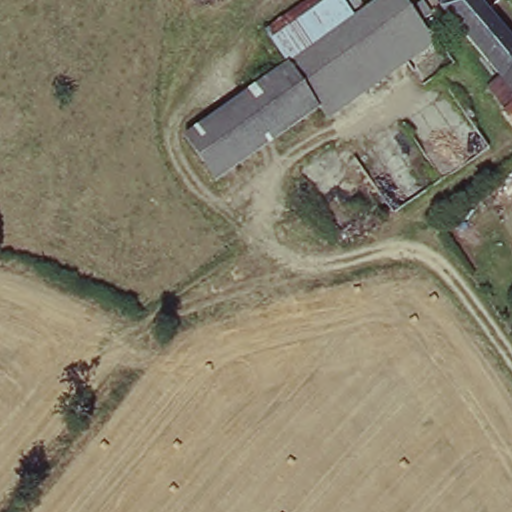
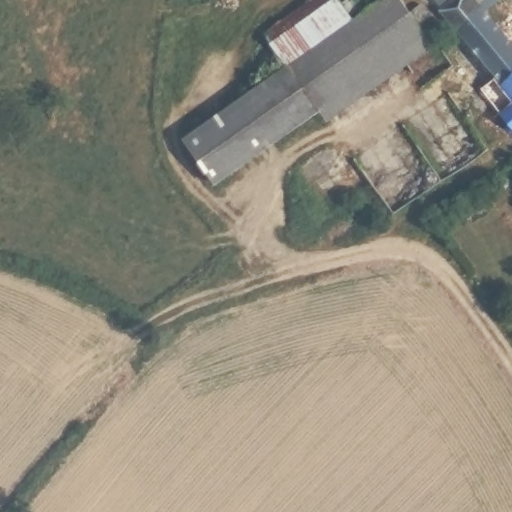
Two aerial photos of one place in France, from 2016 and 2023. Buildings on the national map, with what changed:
unchanged [(323,0),(339,0),(358,29),(292,73),(268,37),(323,0)]
unchanged [(457,0),(478,0),(512,44),(512,135),(498,117),(503,115),(485,92),(497,82),(472,49),(444,12),(457,0)]
unchanged [(358,29),(399,1),(414,22),(425,14),(435,27),(423,35),(435,51),(328,127),(321,116),(292,73),(358,29)]
unchanged [(321,116),(217,187),(188,144),(292,73),(321,116)]

